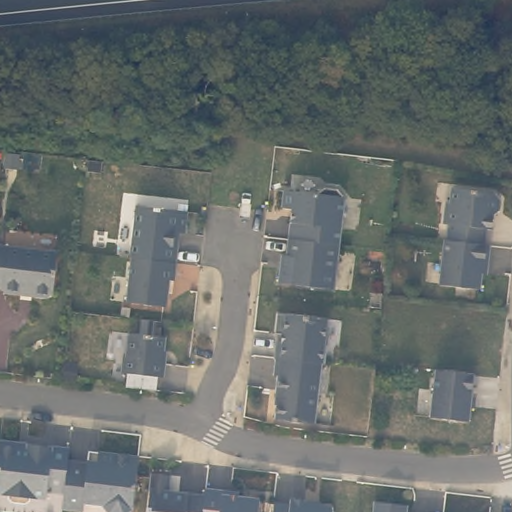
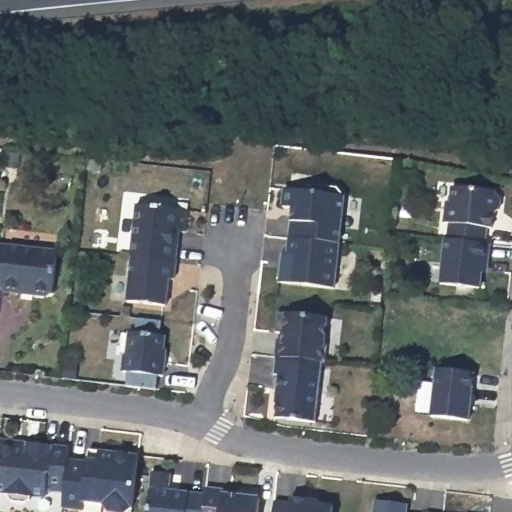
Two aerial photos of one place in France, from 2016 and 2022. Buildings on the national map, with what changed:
unchanged [(293,209),(283,207),(285,191),(318,194),(326,187),(338,189),(344,197),(339,245),(332,244),(289,239),(293,209)]
unchanged [(450,225),(444,224),(447,202),(451,203),(453,188),(496,193),(501,199),(499,211),(493,216),(492,229),(487,229),(485,245),(477,244),(470,243),(448,241),(450,225)]
unchanged [(154,261),(133,258),(131,257),(137,207),(188,212),(186,233),(175,232),(174,246),(179,246),(177,263),(154,261)]
unchanged [(332,244),(339,245),(334,290),(279,283),(281,263),(286,264),(289,239),(332,244)]
unchanged [(448,241),(470,243),(477,244),(485,245),(490,245),(488,262),(483,262),(480,289),(440,285),(445,240),(448,241)]
unchanged [(62,252),(56,295),(54,295),(50,297),(39,296),(36,292),(25,291),(25,294),(7,292),(8,288),(0,287),(0,244),(62,252)]
unchanged [(154,261),(177,263),(175,281),(170,280),(167,307),(128,302),(133,258),(154,261)]
unchanged [(277,341),(283,341),(284,334),(275,333),(277,313),(327,319),(324,345),(327,346),(325,363),(322,363),(275,358),(277,341)]
unchanged [(163,356),(165,356),(163,372),(158,372),(156,386),(147,385),(127,382),(128,368),(123,367),(125,351),(127,351),(130,328),(166,332),(163,356)]
unchanged [(315,423),(274,418),(277,393),(275,392),(277,376),(273,375),(275,358),(322,363),(315,423)]
unchanged [(469,422),(432,417),(437,370),(439,370),(475,374),(469,422)]
unchanged [(68,460),(68,462),(64,493),(47,491),(46,498),(31,497),(31,501),(26,504),(12,502),(8,497),(9,493),(0,493),(0,441),(28,443),(69,448),(68,460)]
unchanged [(133,508),(128,512),(109,512),(104,505),(84,503),(83,511),(62,507),(64,493),(68,462),(68,460),(69,448),(89,451),(88,461),(98,462),(99,452),(139,457),(133,508)]
unchanged [(152,473),(170,475),(168,492),(205,496),(203,507),(202,512),(147,512),(152,473)]
unchanged [(205,490),(223,492),(223,496),(259,500),(258,512),(202,512),(203,507),(205,496),(205,490)]
unchanged [(290,504),(291,499),(309,502),(309,505),(333,507),(332,512),(273,512),(274,507),(274,502),(290,504)]
unchanged [(407,504),(406,512),(374,512),(375,501),(407,504)]

